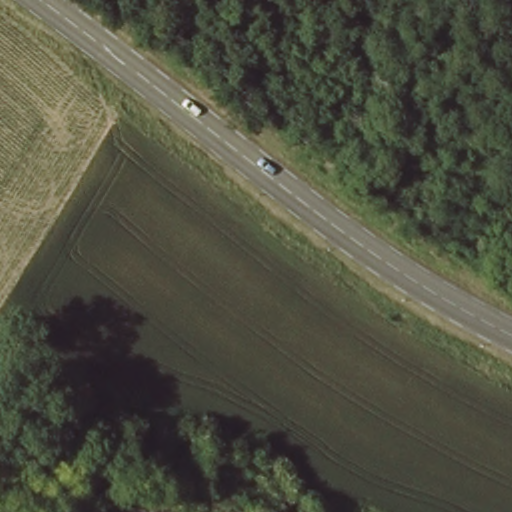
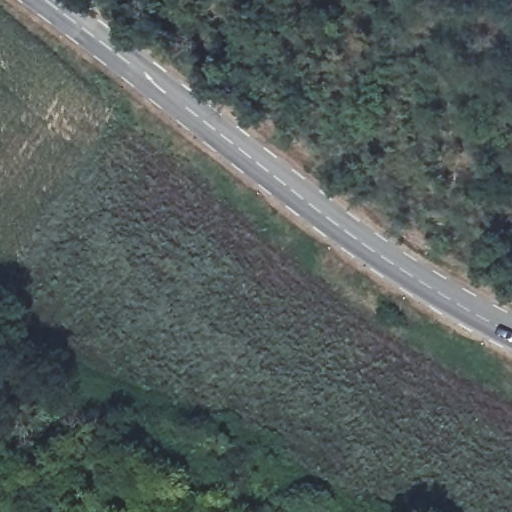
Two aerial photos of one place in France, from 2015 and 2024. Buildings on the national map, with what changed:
[]

